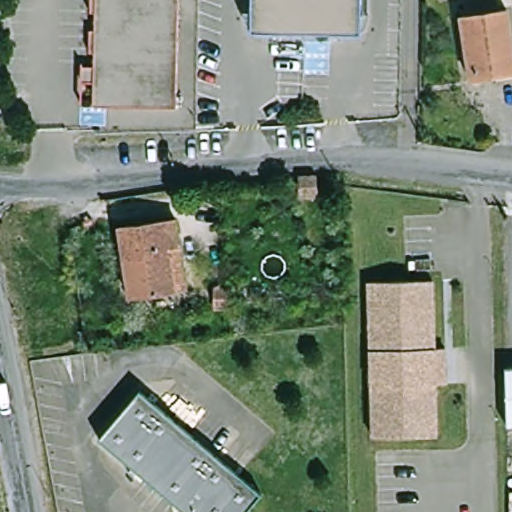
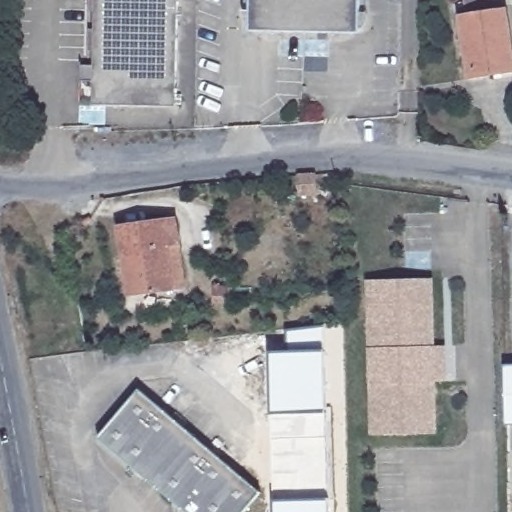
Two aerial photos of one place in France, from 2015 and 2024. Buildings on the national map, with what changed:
unchanged [(95,108),(95,83),(83,82),(83,68),(96,69),(96,54),(91,54),(92,31),(97,31),(97,14),(92,14),(93,0),(181,0),(178,110),(133,109),(95,108)]
unchanged [(254,0),(305,0),(305,36),(253,35),(254,0)]
unchanged [(365,0),(365,37),(305,36),(305,0),(365,0)]
unchanged [(458,18),(467,16),(465,2),(481,0),(497,0),(500,11),(507,10),(512,41),(512,75),(468,82),(458,18)]
unchanged [(300,196),(297,176),(316,174),(318,194),(300,196)]
unchanged [(175,291),(129,297),(119,227),(176,219),(181,247),(187,289),(175,291)]
unchanged [(368,286),(432,285),(435,352),(445,352),(446,387),(435,387),(437,440),(373,441),(368,286)]
new [(267,485),(275,485),(272,413),(266,414),(268,333),(323,330),(328,512),(269,512),(267,485)]
unchanged [(512,427),(506,427),(505,367),(512,367),(512,427)]
unchanged [(102,440),(143,391),(265,493),(250,512),(189,512),(102,440)]

